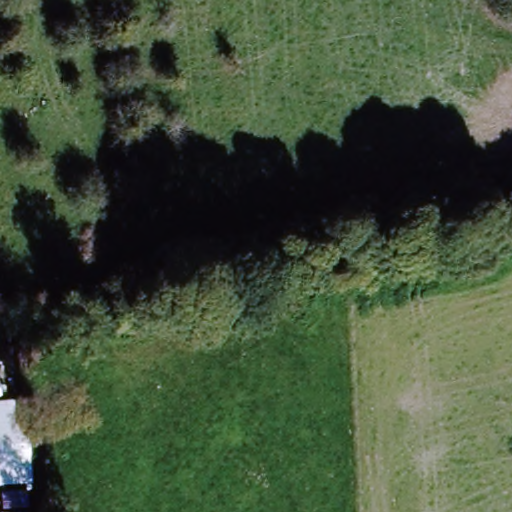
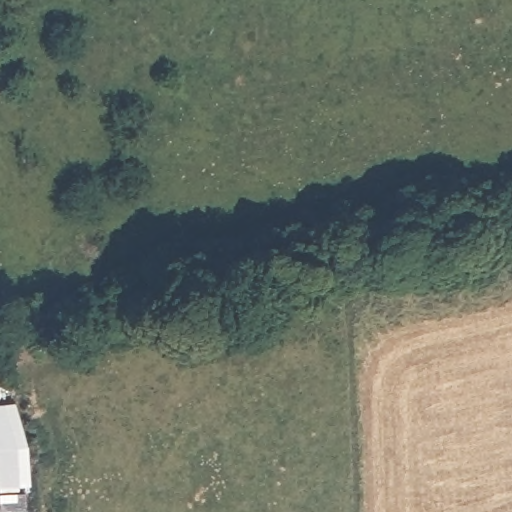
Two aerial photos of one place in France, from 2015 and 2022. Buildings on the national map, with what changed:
unchanged [(30,446),(33,487),(0,488),(0,447),(30,446)]

